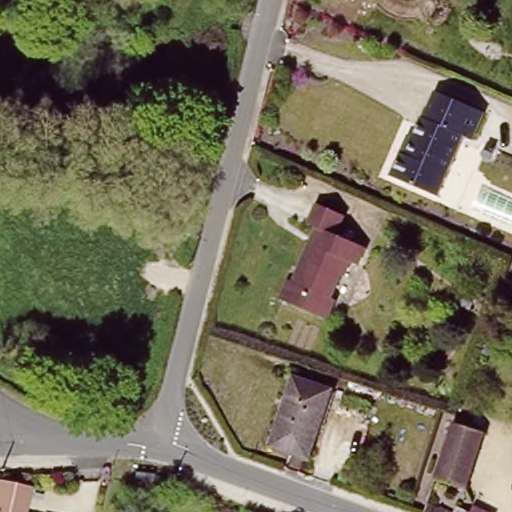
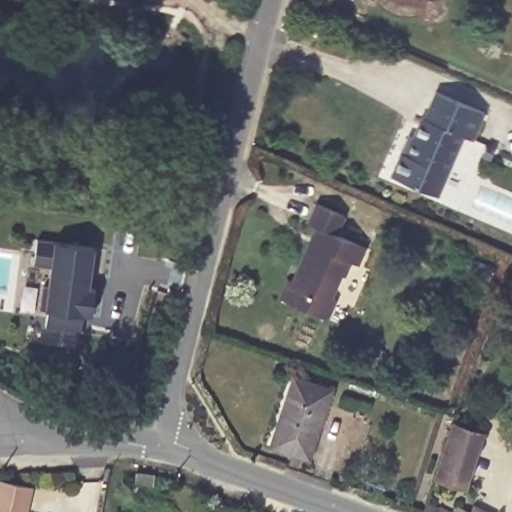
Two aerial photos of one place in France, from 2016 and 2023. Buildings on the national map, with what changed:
unchanged [(487,113),(476,140),(465,135),(440,195),(394,175),(403,153),(408,155),(425,116),(428,118),(439,92),(487,113)]
unchanged [(348,217),(340,236),(368,249),(361,266),(354,263),(348,278),(344,276),(333,299),(340,302),(332,320),(282,299),(290,278),(295,281),(312,242),(316,244),(319,237),(315,235),(318,229),(310,225),(318,205),(348,217)]
new [(80,333),(45,329),(44,308),(50,266),(33,265),(37,239),(54,242),(93,248),(87,288),(93,289),(89,316),(82,315),(80,333)]
unchanged [(330,385),(307,455),(269,441),(292,372),(330,385)]
unchanged [(467,490),(432,480),(451,421),(485,432),(467,490)]
unchanged [(151,474),(132,473),(133,462),(151,463),(151,474)]
unchanged [(27,500),(25,512),(0,512),(0,480),(3,464),(30,469),(24,499),(27,500)]
unchanged [(443,512),(445,508),(451,512),(443,512)]

